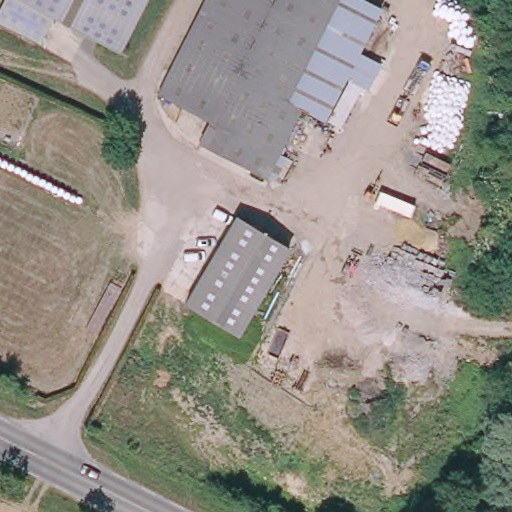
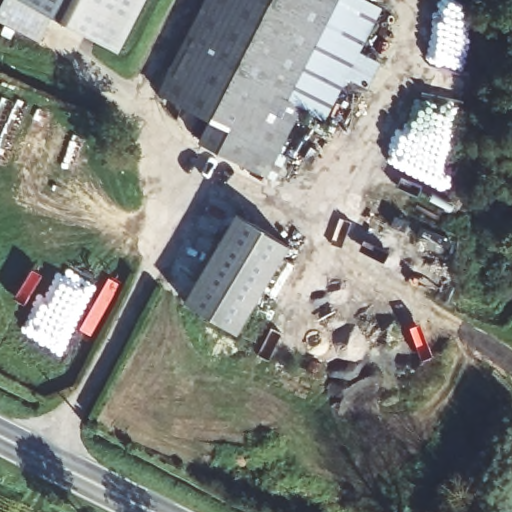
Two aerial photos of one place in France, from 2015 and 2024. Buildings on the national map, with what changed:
unchanged [(50,13),(40,38),(0,20),(0,8),(4,0),(144,0),(120,48),(50,13)]
unchanged [(372,0),(382,5),(325,117),(300,107),(268,177),(198,143),(211,118),(159,92),(206,0),(372,0)]
unchanged [(185,301),(237,213),(289,244),(236,329),(185,301)]

